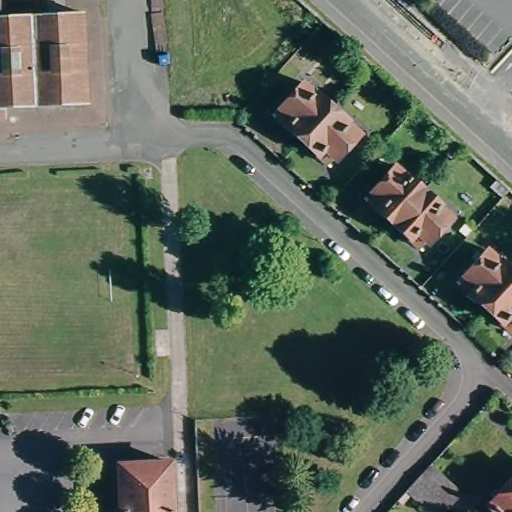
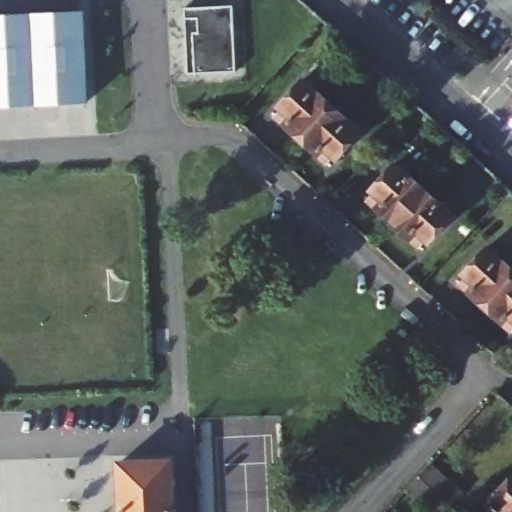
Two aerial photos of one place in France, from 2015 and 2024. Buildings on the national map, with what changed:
unchanged [(86,7),(90,100),(9,104),(0,105),(0,12),(2,11),(86,7)]
new [(184,11),(230,10),(234,74),(185,76),(184,11)]
unchanged [(284,109),(279,104),(302,79),(314,90),(317,87),(333,102),(301,138),(285,123),(277,116),(284,109)]
unchanged [(317,152),(301,138),(333,102),(349,117),(347,120),(360,132),(336,157),(332,152),(325,160),(317,152)]
unchanged [(380,195),(375,190),(397,166),(410,178),(412,175),(429,190),(397,224),(381,210),(374,203),(380,195)]
unchanged [(412,239),(397,224),(429,190),(444,205),(442,207),(455,219),(432,243),(428,239),(421,247),(412,239)]
unchanged [(471,279),(467,275),(489,249),(502,261),(505,258),(512,265),(512,281),(489,307),(473,293),(465,286),(471,279)]
unchanged [(505,322),(489,307),(512,281),(512,329),(505,322)]
unchanged [(509,370),(512,367),(512,374),(509,370)]
unchanged [(171,461),(173,512),(122,512),(120,463),(171,461)]
unchanged [(417,479),(430,466),(462,496),(450,509),(447,512),(426,512),(405,492),(417,479)]
unchanged [(494,512),(487,506),(512,479),(512,512),(494,512)]

